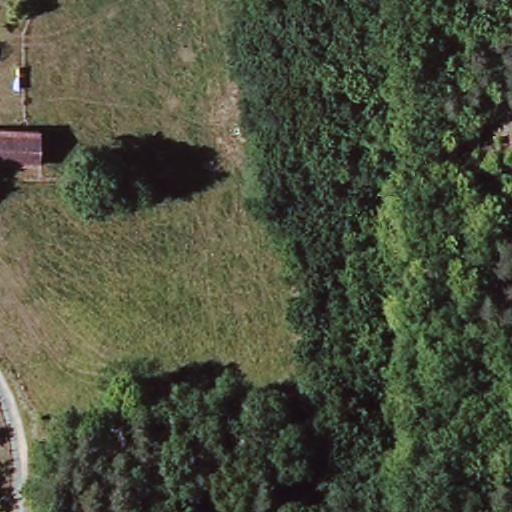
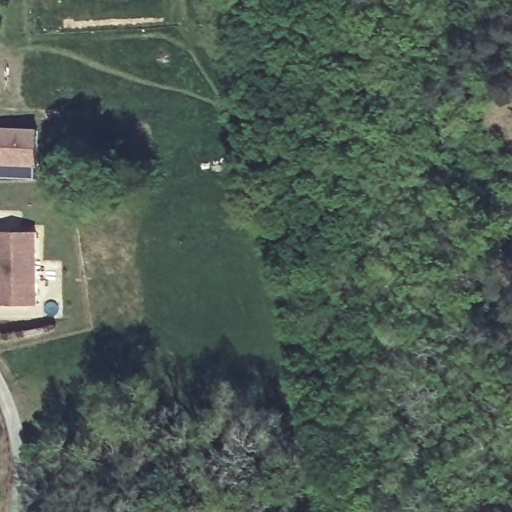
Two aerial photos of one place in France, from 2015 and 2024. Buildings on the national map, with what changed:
unchanged [(37,160),(0,162),(0,127),(35,125),(37,160)]
new [(0,304),(0,230),(39,230),(39,304),(0,304)]

